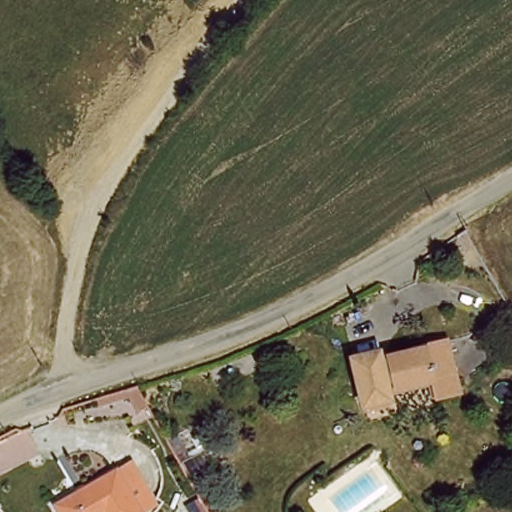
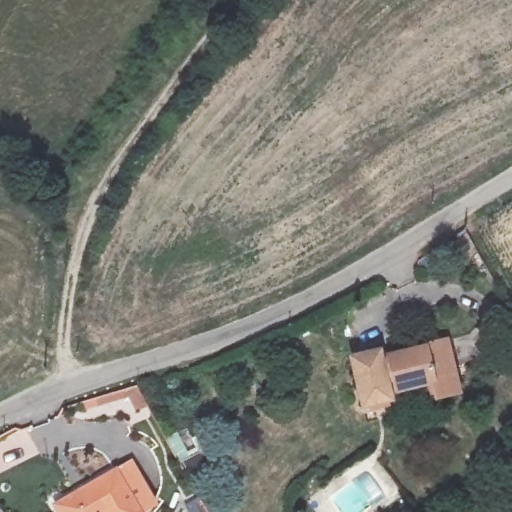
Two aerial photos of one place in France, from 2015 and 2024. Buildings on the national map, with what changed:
unchanged [(382,353),(384,366),(395,363),(395,357),(427,349),(426,344),(447,338),(462,391),(438,396),(435,382),(392,391),(395,401),(368,407),(364,393),(355,393),(347,362),(382,353)]
unchanged [(159,505),(148,512),(141,512),(111,470),(132,461),(159,505)]
unchanged [(141,512),(55,512),(53,510),(111,470),(141,512)]

